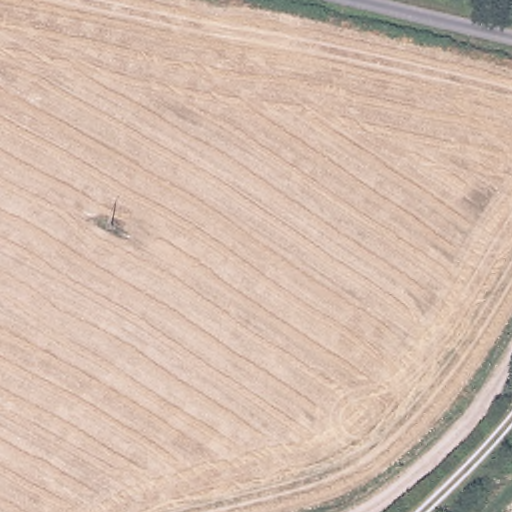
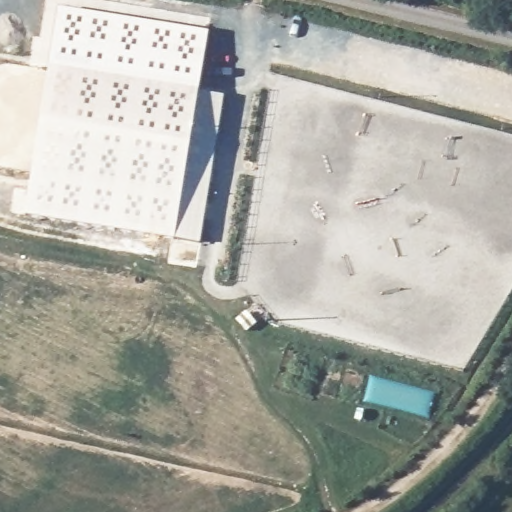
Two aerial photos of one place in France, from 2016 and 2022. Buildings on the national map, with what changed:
new [(173,239),(25,215),(49,69),(197,93),(180,199),(205,204),(202,218),(199,243),(173,239)]
new [(197,93),(222,96),(205,204),(180,199),(197,93)]

